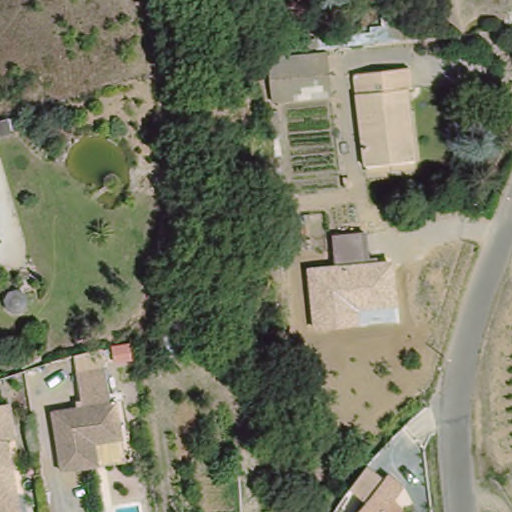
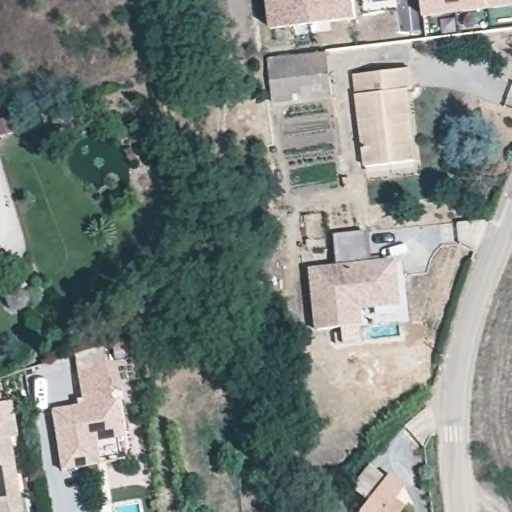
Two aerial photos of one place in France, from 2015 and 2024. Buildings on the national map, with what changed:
new [(270,31),(266,0),(352,0),(355,21),(270,31)]
new [(422,15),(420,0),(512,0),(512,5),(422,15)]
new [(330,32),(296,37),(295,28),(329,23),(330,32)]
unchanged [(265,59),(322,52),(327,97),(270,105),(265,59)]
unchanged [(365,167),(355,75),(409,68),(411,90),(407,91),(413,140),(415,162),(365,167)]
unchanged [(351,179),(352,188),(344,189),(344,179),(351,179)]
unchanged [(356,309),(357,326),(315,331),(307,268),(335,265),(331,235),(366,232),(371,262),(393,260),(397,303),(356,309)]
unchanged [(78,352),(106,346),(120,400),(86,405),(78,352)]
unchanged [(16,399),(19,422),(15,422),(18,442),(20,457),(13,458),(22,512),(0,512),(0,363),(4,402),(16,399)]
unchanged [(97,442),(100,464),(63,469),(55,410),(80,406),(86,405),(95,404),(114,401),(120,400),(124,431),(125,438),(97,442)]
unchanged [(366,500),(350,487),(367,466),(383,479),(388,473),(403,486),(393,499),(402,507),(400,511),(399,512),(357,512),(357,511),(366,500)]

